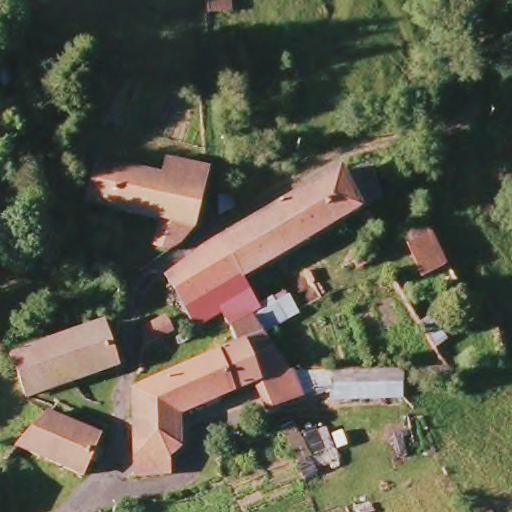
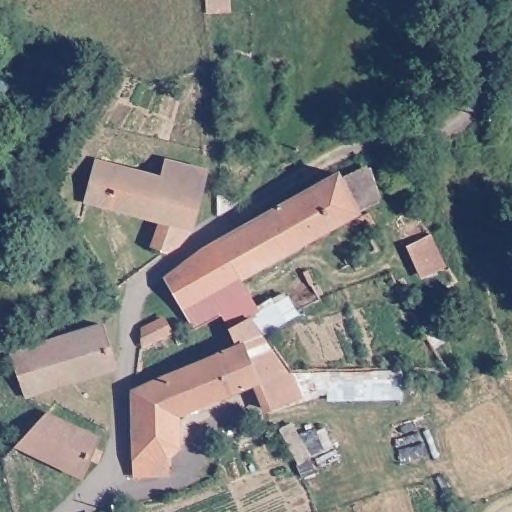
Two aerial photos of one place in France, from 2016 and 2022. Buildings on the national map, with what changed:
unchanged [(199,14),(198,0),(228,0),(229,10),(199,14)]
unchanged [(161,255),(148,248),(156,223),(77,206),(88,158),(157,176),(161,156),(204,167),(189,230),(161,255)]
unchanged [(359,213),(239,281),(254,306),(268,295),(274,301),(284,293),(296,315),(261,335),(287,371),(400,370),(400,401),(296,401),(264,410),(256,384),(229,395),(177,417),(177,447),(166,458),(168,476),(125,476),(129,458),(128,445),(129,388),(215,351),(233,343),(226,328),(221,313),(198,329),(194,323),(186,323),(178,308),(157,276),(203,244),(336,169),(363,163),(376,202),(359,213)]
unchanged [(20,399),(5,352),(100,320),(113,366),(20,399)]
unchanged [(96,438),(89,447),(99,455),(83,476),(48,457),(40,467),(20,455),(8,471),(4,458),(44,411),(96,438)]

